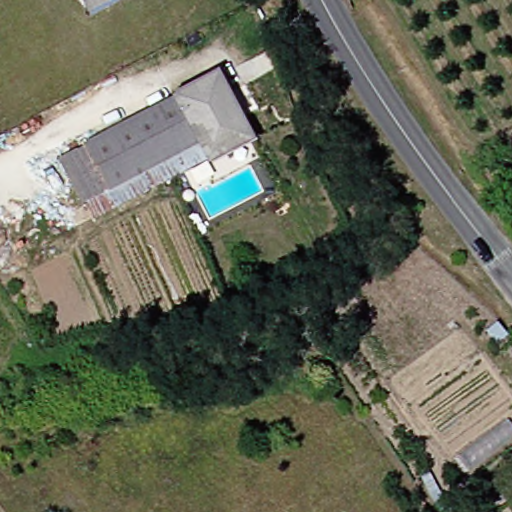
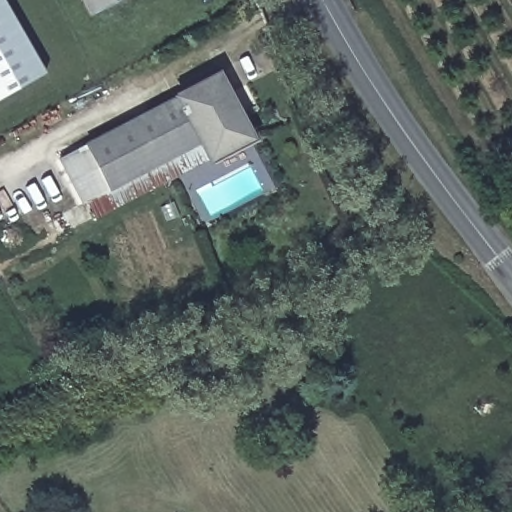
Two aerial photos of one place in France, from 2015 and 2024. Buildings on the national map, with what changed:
new [(50,75),(0,104),(0,0),(6,0),(50,75)]
unchanged [(93,17),(83,0),(121,0),(93,17)]
unchanged [(201,141),(87,203),(62,159),(218,74),(253,138),(211,160),(210,156),(201,141)]
unchanged [(95,220),(87,203),(201,141),(210,156),(95,220)]

